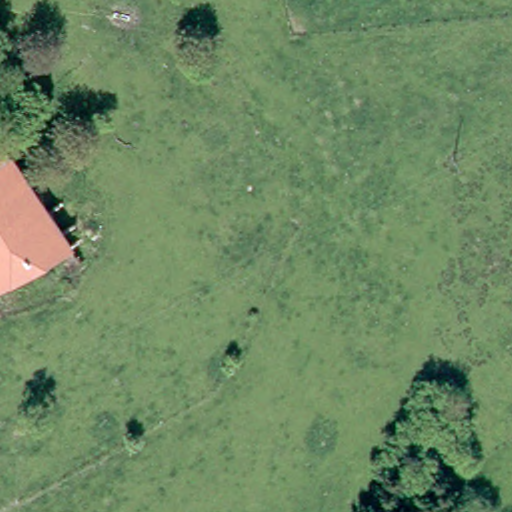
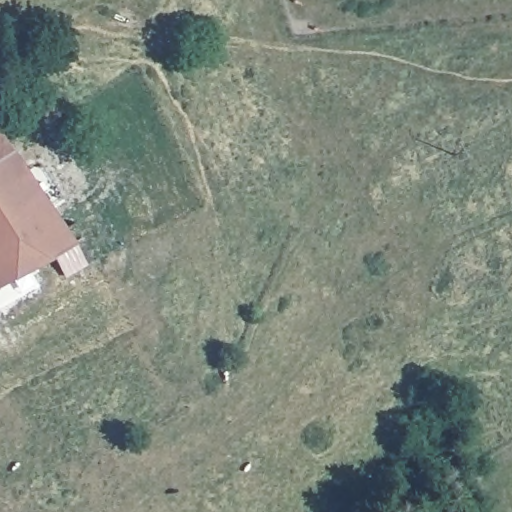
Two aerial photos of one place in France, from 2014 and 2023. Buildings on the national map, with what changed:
unchanged [(0,138),(10,151),(0,158),(0,138)]
unchanged [(65,276),(56,256),(0,287),(0,158),(10,151),(48,207),(64,198),(86,237),(97,255),(82,265),(65,276)]

